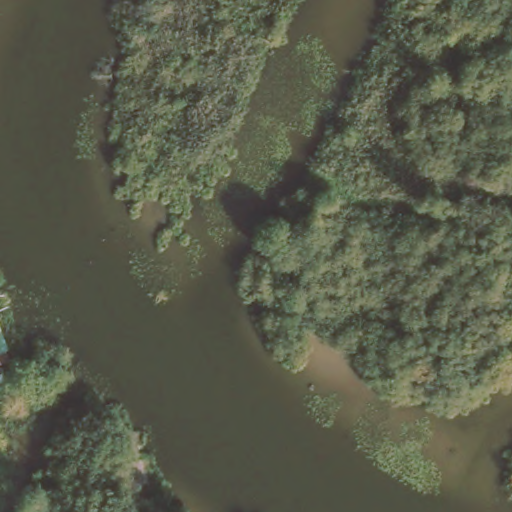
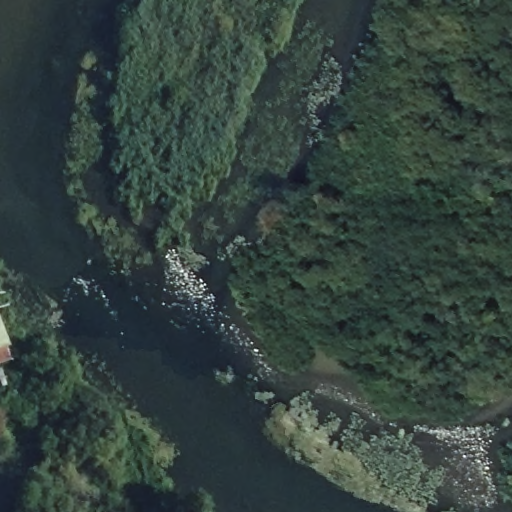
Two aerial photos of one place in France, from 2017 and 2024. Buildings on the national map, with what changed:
unchanged [(0,361),(0,333),(5,347),(9,358),(0,361)]

